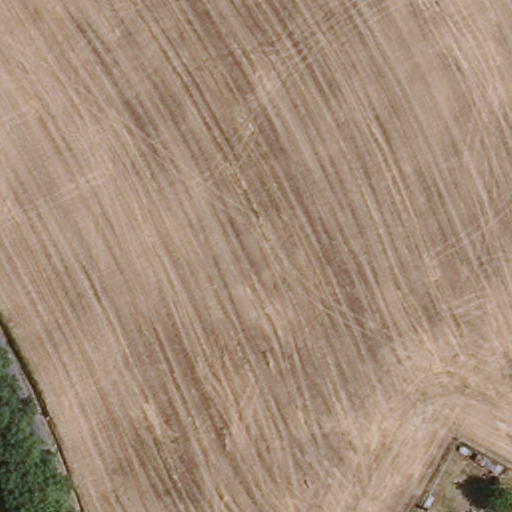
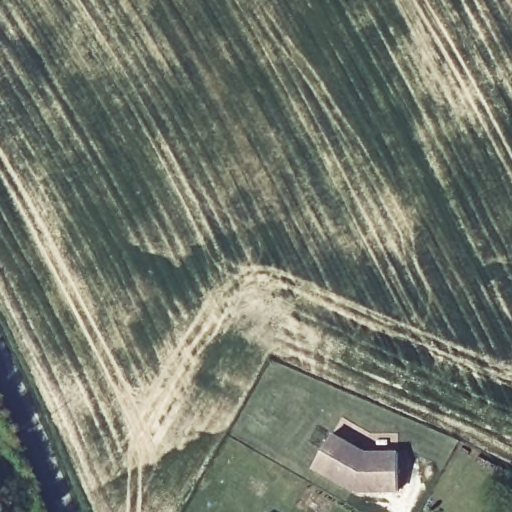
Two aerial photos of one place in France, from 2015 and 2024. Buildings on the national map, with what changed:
new [(368,451),(395,450),(397,492),(357,493),(312,467),(332,430),(368,451)]

